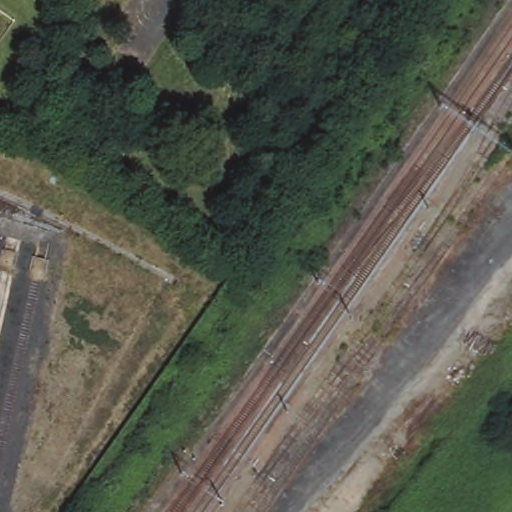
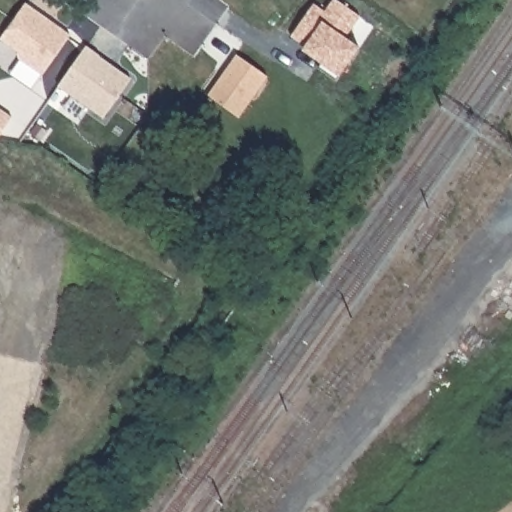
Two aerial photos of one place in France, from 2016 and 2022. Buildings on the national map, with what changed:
new [(71,35),(43,76),(20,61),(18,52),(1,40),(26,3),(71,35)]
new [(132,78),(104,118),(58,87),(86,45),(132,78)]
new [(269,76),(239,117),(208,95),(238,54),(269,76)]

